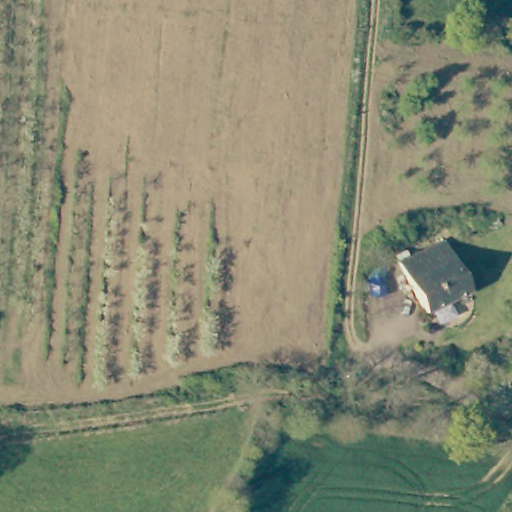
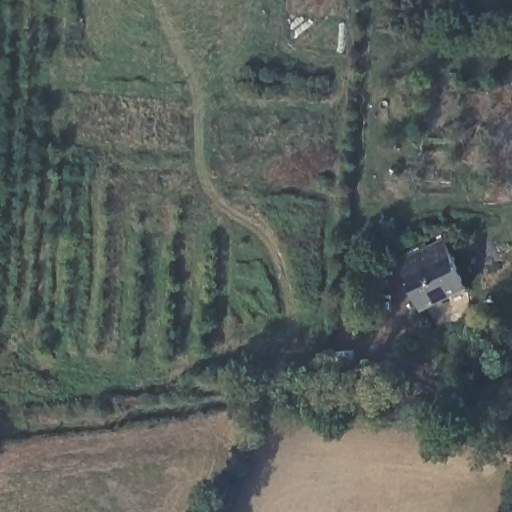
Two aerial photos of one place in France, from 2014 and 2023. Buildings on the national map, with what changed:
unchanged [(442,239),(466,291),(421,312),(398,260),(442,239)]

